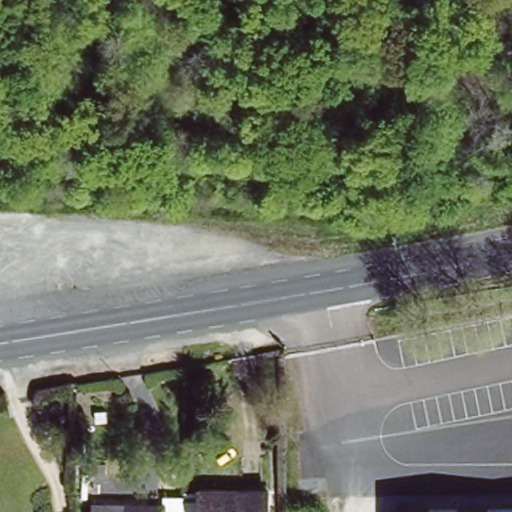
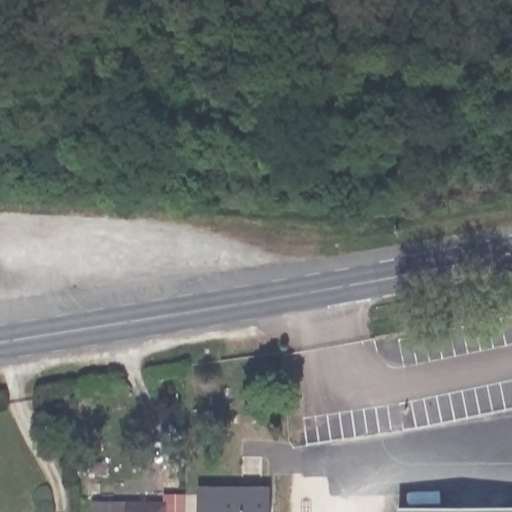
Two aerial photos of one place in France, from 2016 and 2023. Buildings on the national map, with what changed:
unchanged [(270,495),(270,512),(201,512),(201,494),(270,495)]
unchanged [(125,496),(146,496),(168,496),(168,508),(178,508),(178,512),(91,512),(91,497),(109,497),(108,508),(125,508),(125,496)]
unchanged [(392,507),(512,506),(512,512),(392,512),(392,507)]

